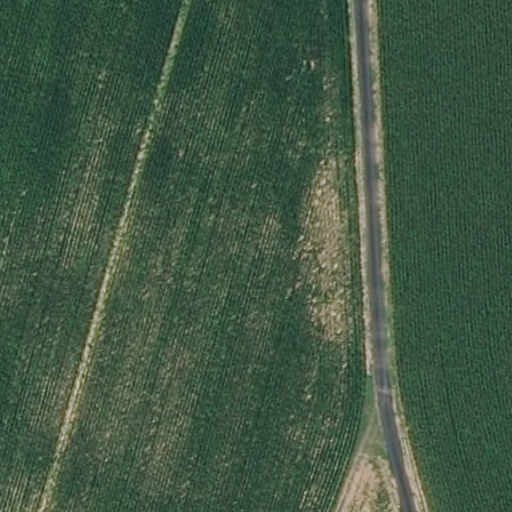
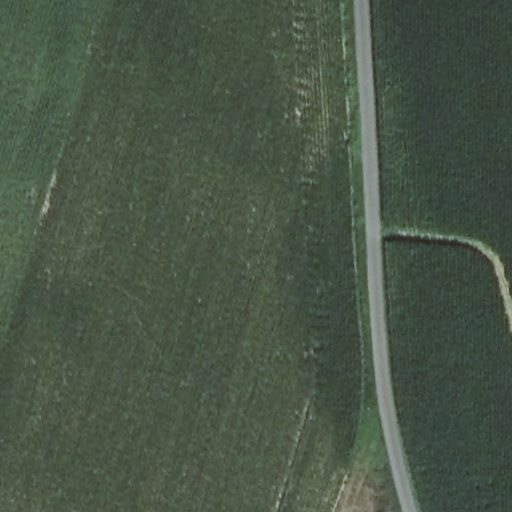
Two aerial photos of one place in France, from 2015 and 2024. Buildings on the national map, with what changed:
[]

